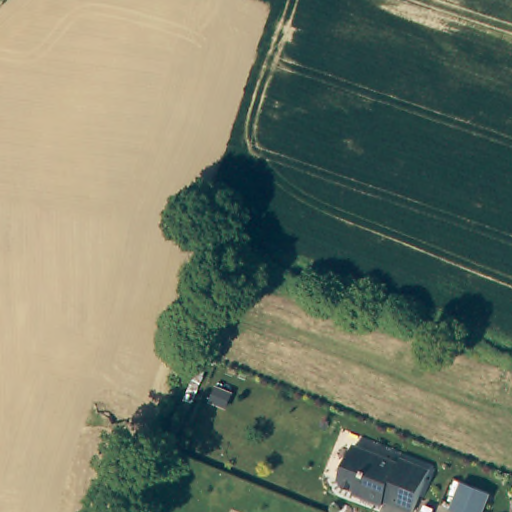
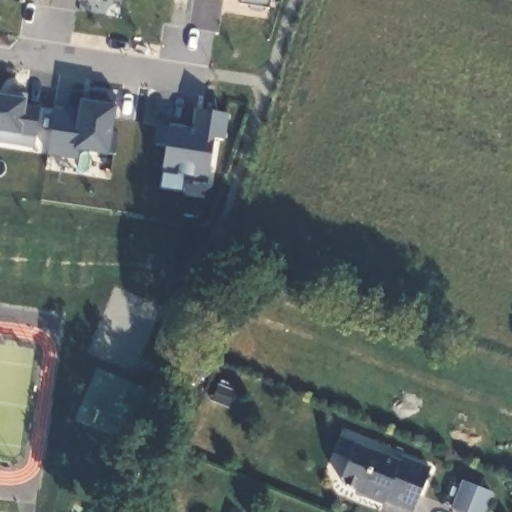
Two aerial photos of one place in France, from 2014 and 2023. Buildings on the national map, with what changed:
new [(267,8),(242,4),(242,0),(269,0),(267,8)]
new [(47,154),(53,107),(78,111),(80,101),(85,101),(87,90),(116,95),(115,105),(111,131),(118,132),(115,153),(109,152),(109,154),(76,150),(75,158),(47,154)]
new [(24,107),(39,108),(34,147),(0,143),(0,96),(25,99),(24,107)]
new [(157,126),(170,124),(194,127),(196,109),(230,112),(225,141),(214,140),(208,182),(184,179),(185,174),(161,172),(165,145),(153,144),(157,126)]
unchanged [(406,460),(408,455),(435,465),(418,510),(392,500),(390,505),(371,497),(372,492),(352,485),(347,481),(347,476),(361,443),(406,460)]
unchanged [(483,512),(462,512),(451,507),(463,479),(491,492),(483,512)]

